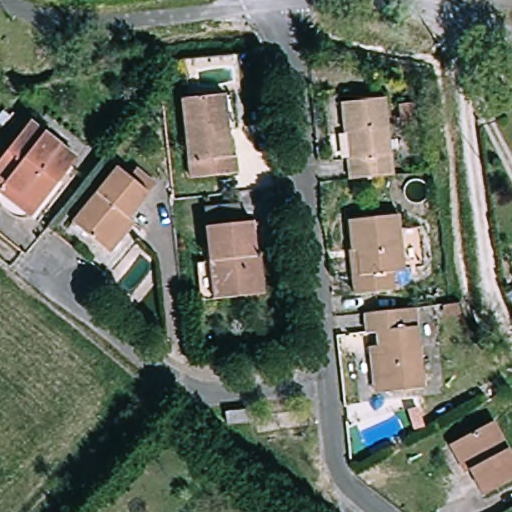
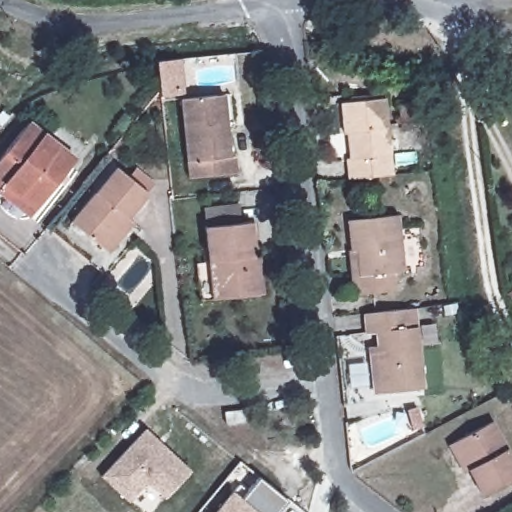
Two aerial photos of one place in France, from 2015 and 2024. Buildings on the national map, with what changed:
unchanged [(240,155),(242,173),(196,179),(187,101),(219,96),(231,95),(233,124),(236,155),(240,155)]
unchanged [(342,102),(384,97),(391,175),(348,179),(346,156),(344,130),(342,102)]
unchanged [(413,101),(415,120),(400,120),(398,105),(413,101)]
unchanged [(0,161),(32,122),(79,160),(38,209),(32,216),(0,190),(0,161)]
unchanged [(110,255),(105,251),(74,224),(118,169),(130,180),(137,171),(156,187),(140,207),(129,221),(135,226),(110,255)]
unchanged [(269,298),(256,299),(218,303),(212,230),(210,210),(244,207),(245,226),(255,225),(259,261),(263,260),(269,298)]
unchanged [(357,247),(354,221),(402,216),(408,269),(395,270),(397,289),(359,295),(357,275),(354,248),(357,247)]
unchanged [(104,275),(112,281),(105,289),(98,282),(104,275)]
unchanged [(371,348),(380,346),(379,330),(371,330),(368,313),(412,308),(413,325),(422,325),(429,390),(386,393),(376,394),(371,348)]
unchanged [(240,410),(241,421),(227,421),(226,410),(240,410)]
unchanged [(512,453),(512,480),(485,494),(472,468),(465,472),(451,444),(459,440),(496,421),(512,453)]
new [(147,423),(193,466),(167,493),(149,476),(130,496),(103,471),(147,423)]
new [(233,494),(241,500),(259,477),(289,501),(279,512),(216,512),(233,494)]

